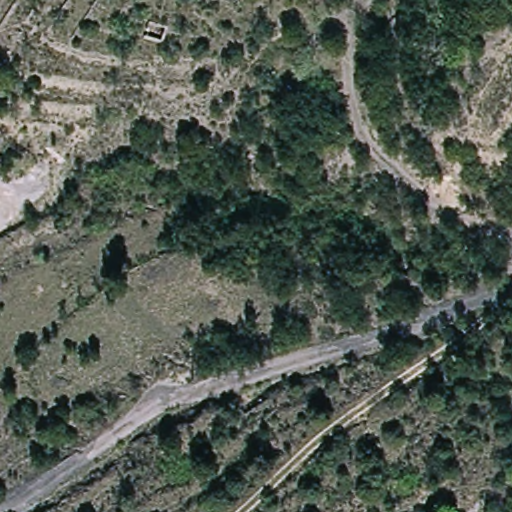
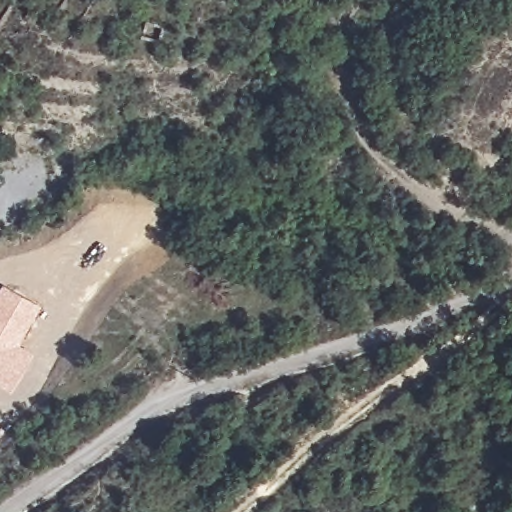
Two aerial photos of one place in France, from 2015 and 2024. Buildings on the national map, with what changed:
new [(34,353),(10,392),(0,386),(0,282),(40,304),(18,343),(34,353)]

